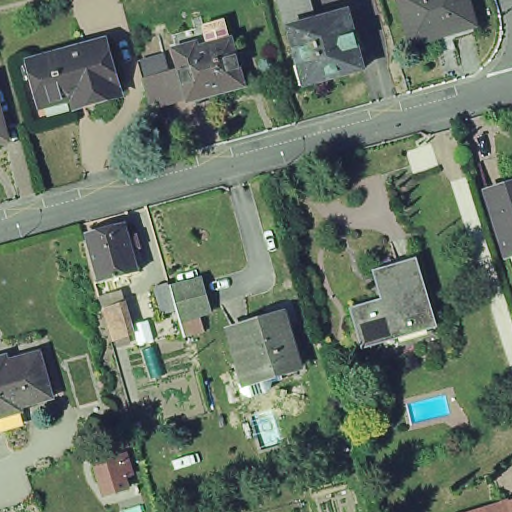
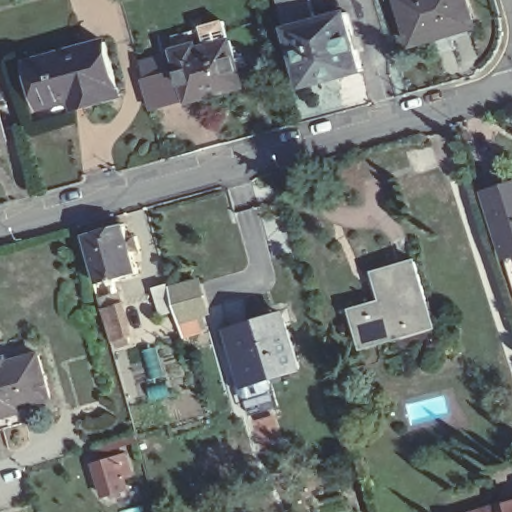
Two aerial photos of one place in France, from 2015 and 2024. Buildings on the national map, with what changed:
unchanged [(315,22),(288,31),(288,32),(286,32),(277,0),(309,0),(315,22)]
unchanged [(417,46),(404,0),(469,0),(478,29),(455,36),(438,40),(417,46)]
unchanged [(347,14),(363,71),(304,87),(288,32),(288,31),(315,22),(347,14)]
unchanged [(72,94),(42,102),(30,57),(107,36),(121,91),(75,104),(72,94)]
unchanged [(180,52),(200,46),(203,56),(218,51),(217,46),(236,41),(249,89),(193,103),(192,101),(185,72),(180,52)]
unchanged [(155,111),(146,82),(185,72),(192,101),(155,111)]
unchanged [(11,142),(0,145),(0,99),(11,142)]
unchanged [(489,195),(512,187),(512,258),(509,258),(489,195)]
unchanged [(93,285),(82,237),(121,229),(125,242),(132,241),(135,254),(128,256),(133,277),(93,285)]
unchanged [(400,340),(365,351),(354,313),(390,302),(388,295),(381,297),(375,276),(415,263),(427,305),(421,307),(426,326),(398,335),(400,340)]
unchanged [(184,315),(176,286),(203,278),(212,307),(184,315)]
unchanged [(171,281),(178,306),(165,310),(158,285),(171,281)]
unchanged [(125,347),(123,342),(117,343),(107,311),(124,306),(133,338),(131,340),(133,346),(125,347)]
unchanged [(250,386),(233,332),(273,321),(287,317),(290,325),(302,369),(250,386)]
unchanged [(26,420),(3,426),(2,421),(0,421),(0,357),(5,356),(6,361),(39,352),(50,395),(18,403),(19,408),(22,407),(26,420)]
unchanged [(103,497),(95,460),(127,449),(139,488),(103,497)]
unchanged [(503,504),(512,501),(512,512),(478,512),(496,506),(503,504)]

